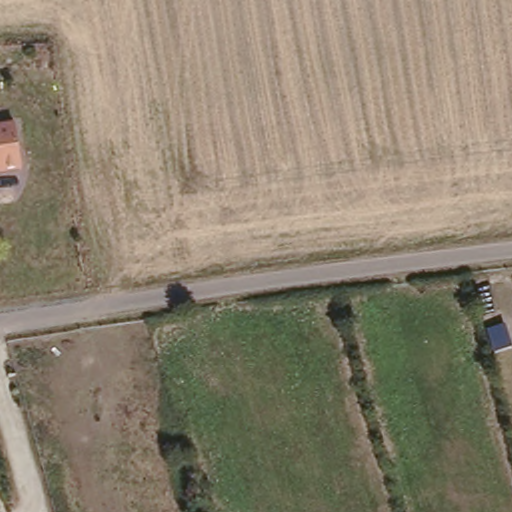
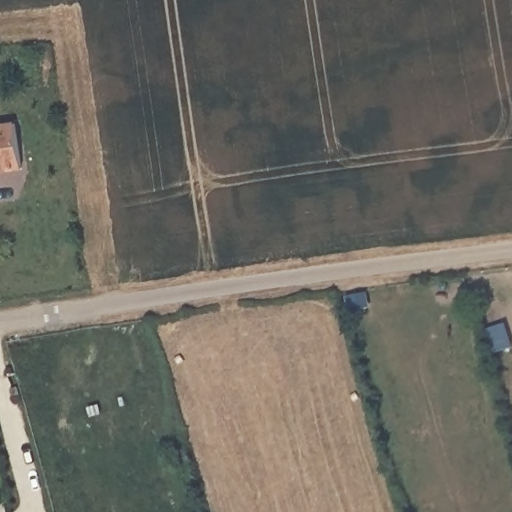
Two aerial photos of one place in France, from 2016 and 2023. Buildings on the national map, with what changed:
unchanged [(28,173),(0,177),(0,120),(20,118),(28,173)]

